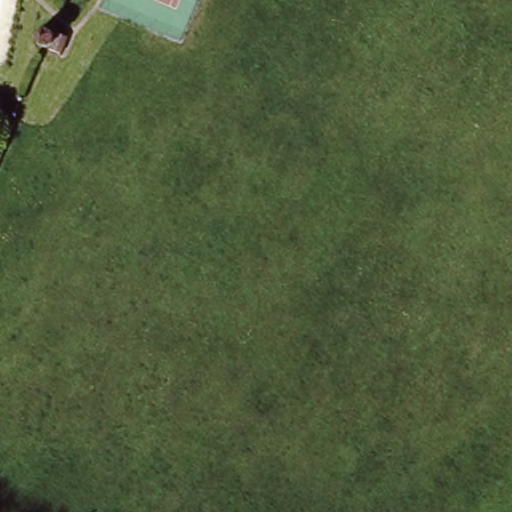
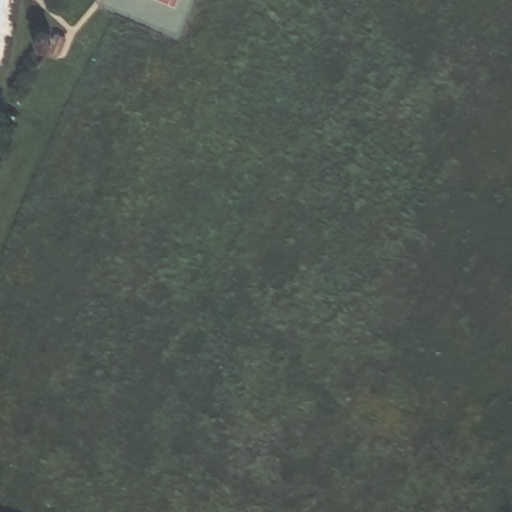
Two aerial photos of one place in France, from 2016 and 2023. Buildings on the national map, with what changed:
unchanged [(46,43),(40,40),(39,33),(41,28),(46,25),(53,25),(58,30),(59,38),(53,44),(46,43)]

